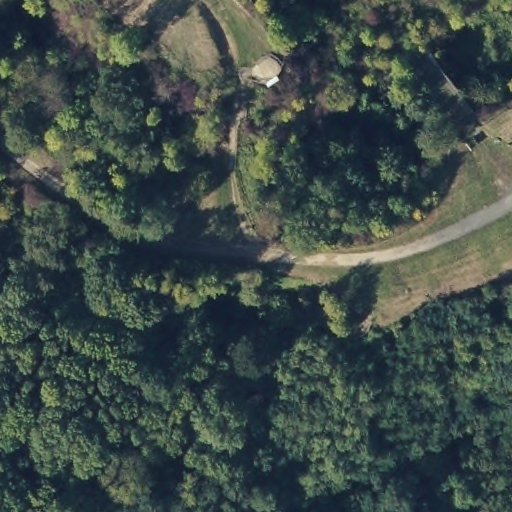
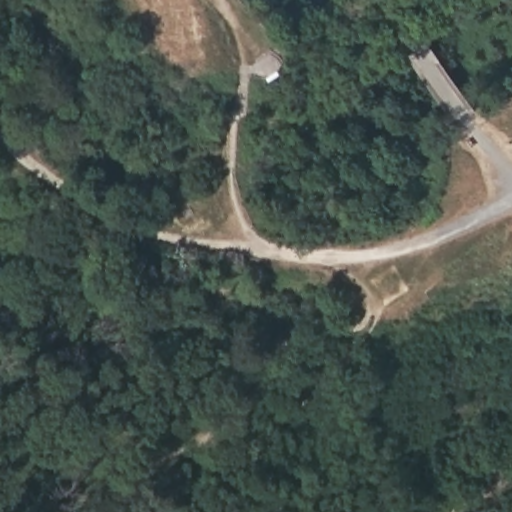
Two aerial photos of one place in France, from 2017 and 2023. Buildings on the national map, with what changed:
unchanged [(284,70),(262,80),(253,61),(273,50),(284,70)]

